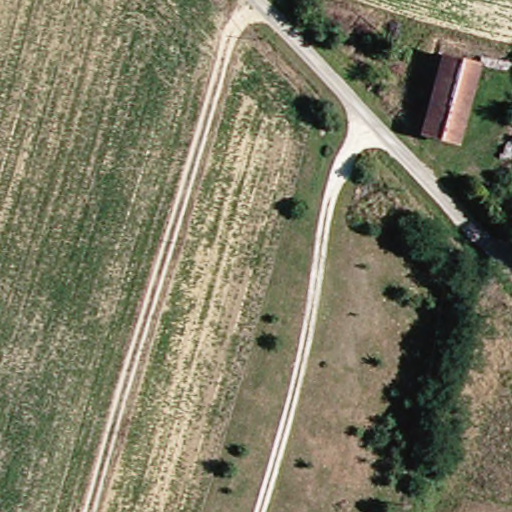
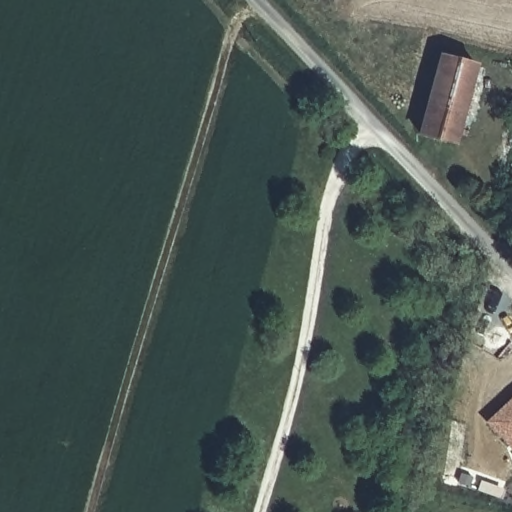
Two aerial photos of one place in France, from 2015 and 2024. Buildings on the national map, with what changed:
unchanged [(460,143),(429,135),(445,77),(451,53),(482,61),(478,79),(460,143)]
new [(512,398),(512,449),(486,422),(512,398)]

